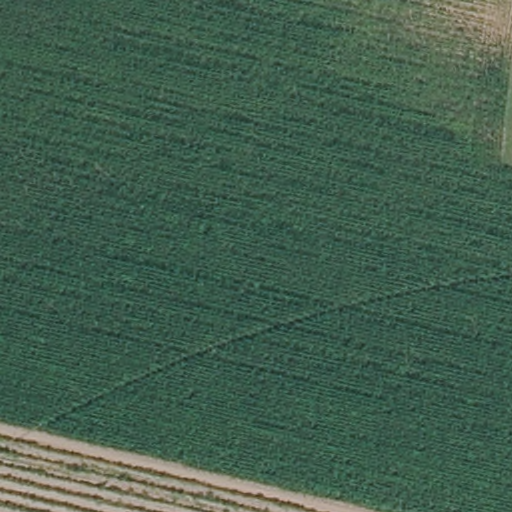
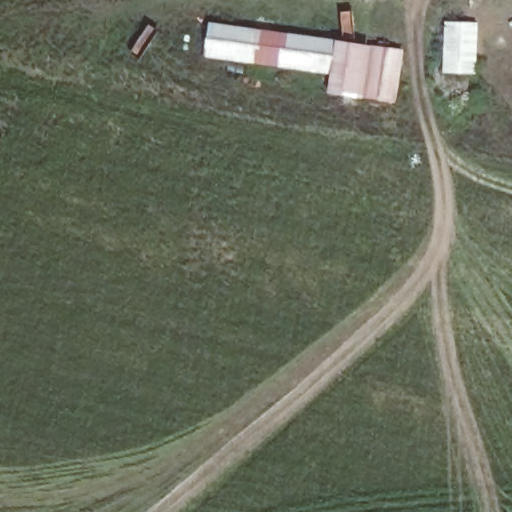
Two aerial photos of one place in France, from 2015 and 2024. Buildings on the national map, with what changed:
new [(444,20),(479,22),(477,75),(442,73),(444,20)]
new [(203,57),(209,21),(289,32),(337,39),(405,49),(395,103),(327,93),(330,75),(279,67),(203,57)]

